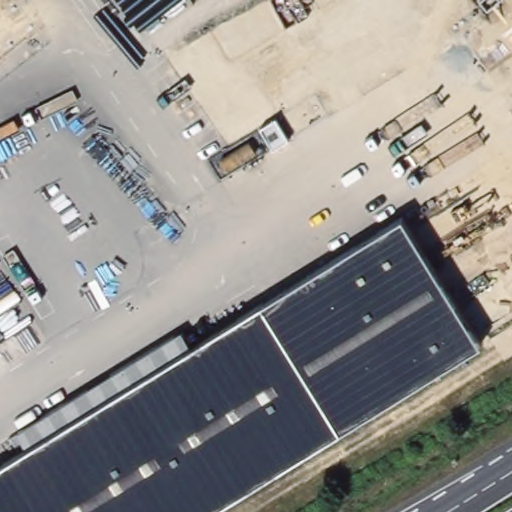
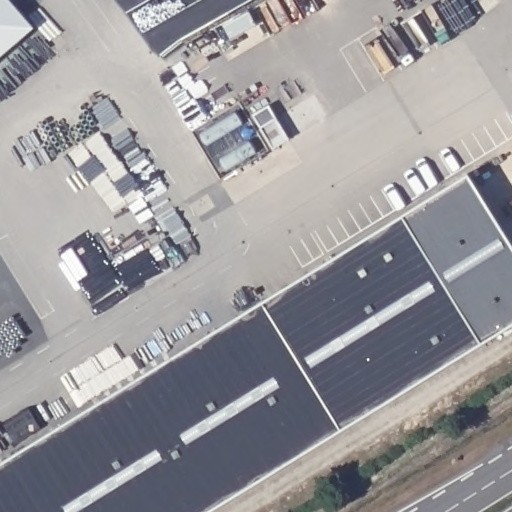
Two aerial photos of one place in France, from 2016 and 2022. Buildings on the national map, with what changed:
new [(0,0),(8,0),(34,27),(0,57),(0,0)]
new [(406,212),(468,175),(512,246),(512,322),(487,337),(406,212)]
unchanged [(406,212),(487,337),(217,508),(210,512),(0,512),(0,467),(167,360),(406,212)]

